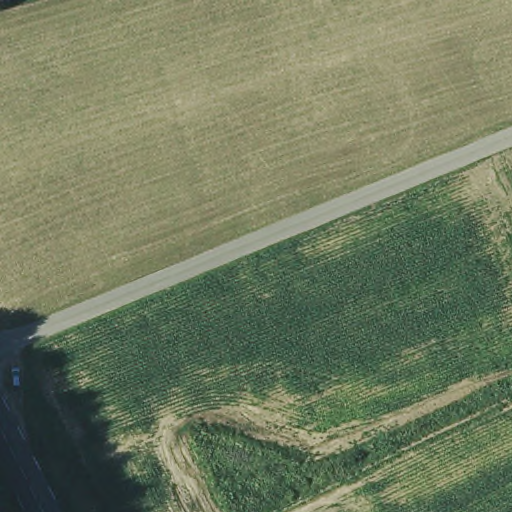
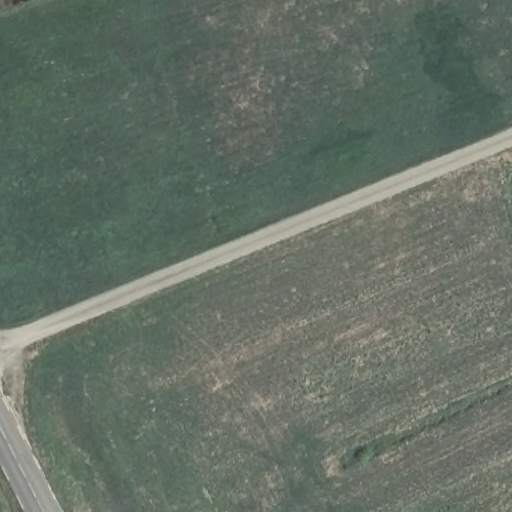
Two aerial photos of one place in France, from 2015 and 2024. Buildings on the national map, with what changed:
unchanged [(7,11),(0,13),(0,0),(3,0),(7,11)]

